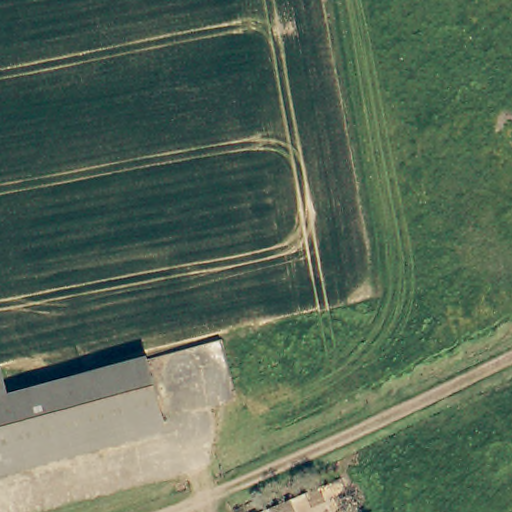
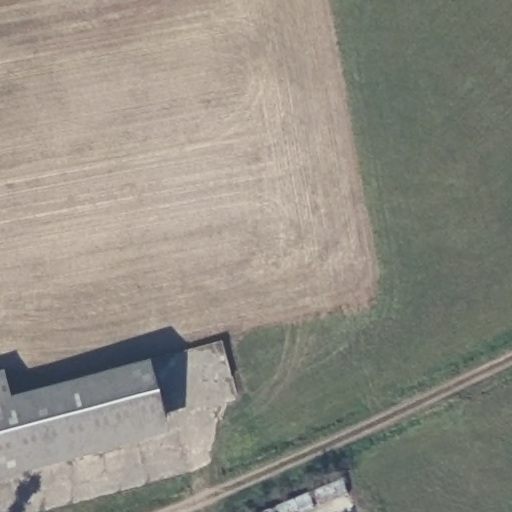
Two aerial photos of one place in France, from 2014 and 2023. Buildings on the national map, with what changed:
unchanged [(0,460),(0,369),(9,394),(149,356),(165,416),(0,460)]

